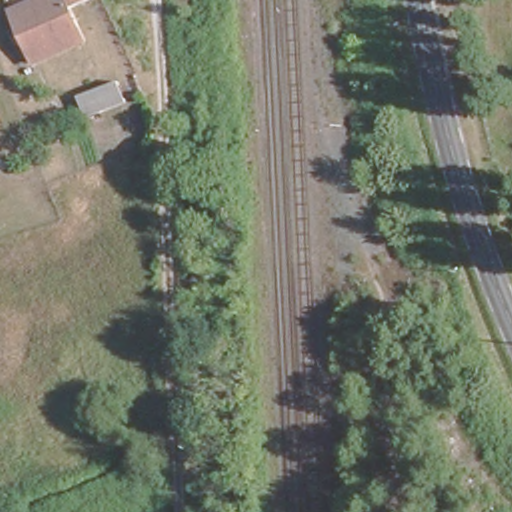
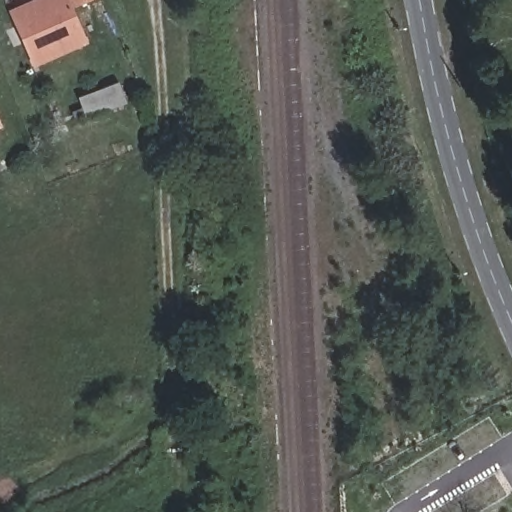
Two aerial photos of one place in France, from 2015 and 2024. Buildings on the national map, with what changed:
unchanged [(36,57),(14,6),(26,0),(73,0),(71,1),(85,34),(36,57)]
unchanged [(113,87),(121,107),(86,121),(78,100),(113,87)]

